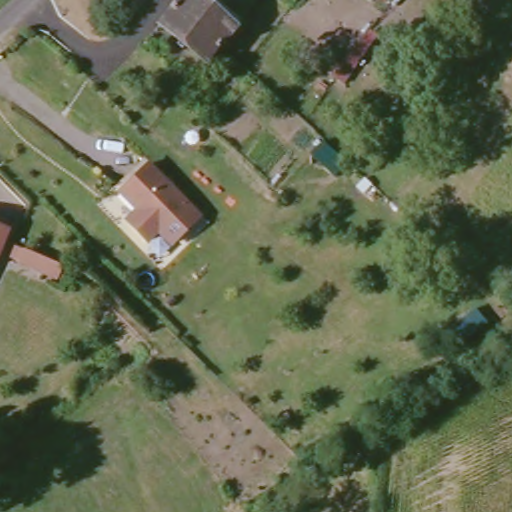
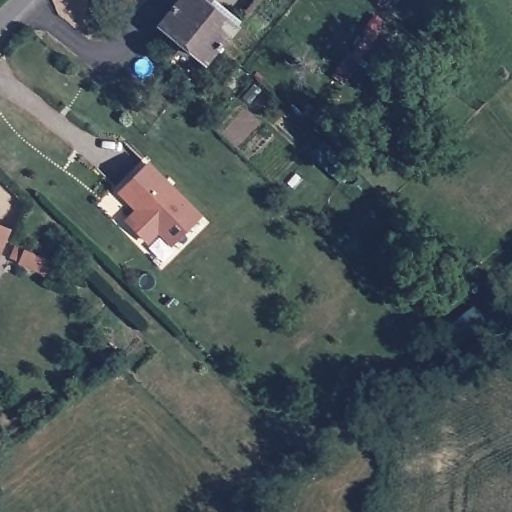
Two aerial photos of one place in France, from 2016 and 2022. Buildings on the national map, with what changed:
unchanged [(152,20),(169,0),(209,0),(231,19),(227,24),(213,41),(197,59),(152,20)]
unchanged [(138,213),(120,194),(115,189),(142,160),(147,165),(199,217),(172,245),(159,233),(149,244),(135,230),(128,223),(138,213)]
unchanged [(5,232),(0,244),(0,230),(5,232)]
unchanged [(1,243),(22,251),(62,266),(57,280),(17,264),(18,259),(0,252),(0,245),(1,243)]

